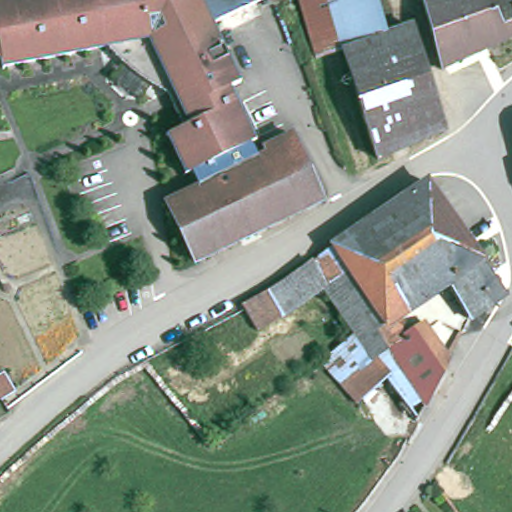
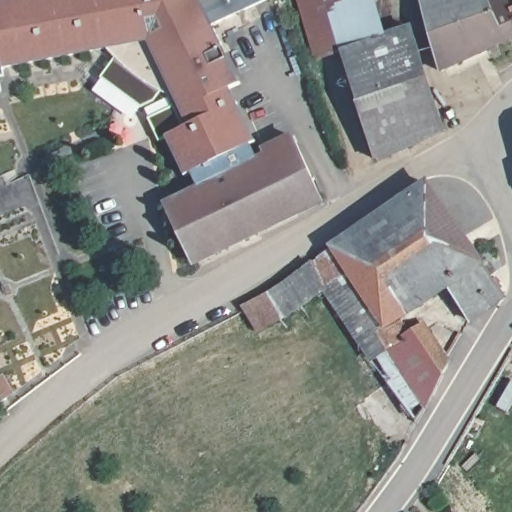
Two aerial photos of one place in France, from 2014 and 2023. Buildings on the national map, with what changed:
unchanged [(195,174),(187,178),(185,174),(190,172),(176,139),(170,141),(169,137),(187,129),(170,93),(112,47),(10,66),(11,69),(7,70),(5,58),(0,59),(0,1),(5,0),(269,0),(270,2),(215,28),(240,83),(245,81),(247,85),(232,92),(237,105),(242,103),(244,106),(239,108),(254,142),(259,140),(260,144),(253,147),(259,159),(266,156),(264,152),(294,139),(324,202),(195,265),(167,203),(201,188),(195,174)]
unchanged [(322,65),(301,0),(375,0),(387,43),(344,57),(322,65)]
unchanged [(422,0),(491,0),(492,4),(503,0),(512,0),(512,41),(442,71),(422,0)]
unchanged [(387,43),(414,33),(432,95),(447,137),(377,166),(344,57),(387,43)]
unchanged [(385,331),(331,247),(428,183),(503,291),(501,301),(469,320),(447,286),(400,319),(385,331)]
unchanged [(331,247),(385,331),(365,350),(327,293),(311,264),(331,247)]
unchanged [(258,333),(241,306),(311,264),(327,293),(258,333)]
unchanged [(409,333),(424,323),(447,360),(447,369),(427,409),(395,382),(365,350),(385,331),(400,319),(409,333)]
unchanged [(0,398),(0,378),(5,375),(15,390),(0,399),(0,398)]

